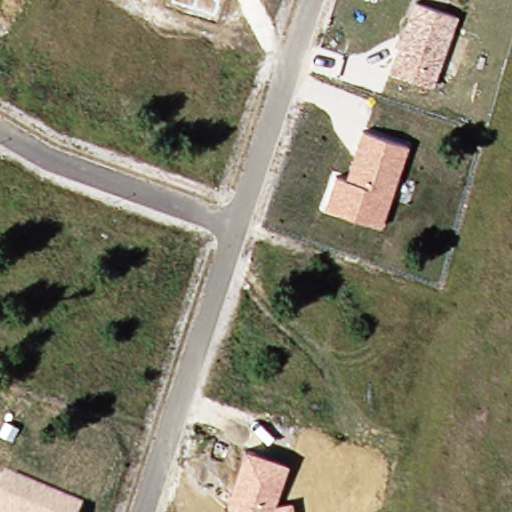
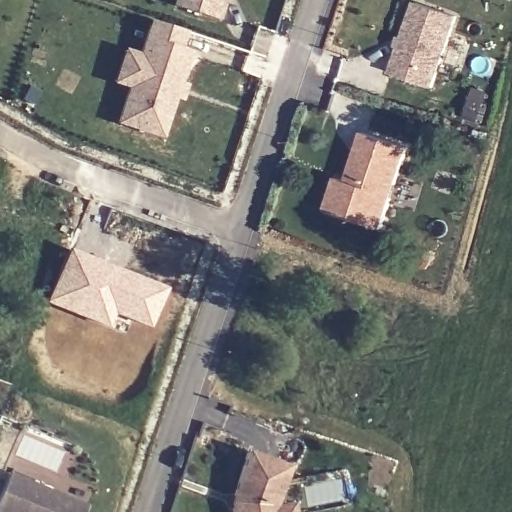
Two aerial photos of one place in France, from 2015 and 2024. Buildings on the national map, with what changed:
unchanged [(173,0),(221,0),(215,20),(171,7),(173,0)]
unchanged [(414,4),(459,18),(434,90),(389,75),(414,4)]
new [(173,101),(167,98),(153,139),(111,123),(122,88),(107,83),(117,52),(133,57),(144,22),(178,33),(172,51),(182,54),(171,85),(177,88),(173,101)]
unchanged [(409,149),(381,231),(326,213),(336,178),(346,182),(362,134),(409,149)]
new [(151,326),(117,313),(111,328),(46,302),(69,247),(168,287),(151,326)]
unchanged [(275,505),(292,502),(294,512),(228,512),(226,504),(243,452),(288,466),(275,505)]
unchanged [(81,512),(0,512),(0,487),(6,472),(83,504),(81,512)]

